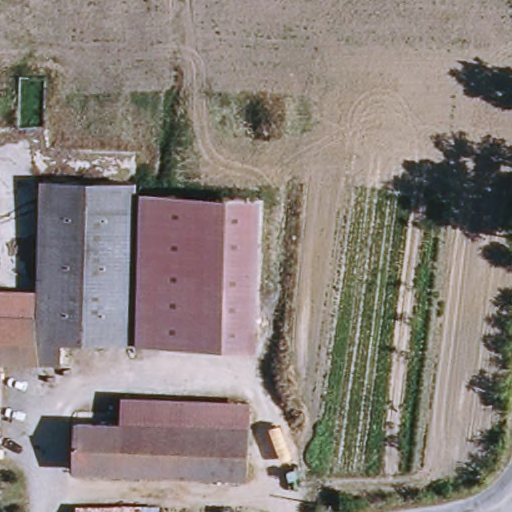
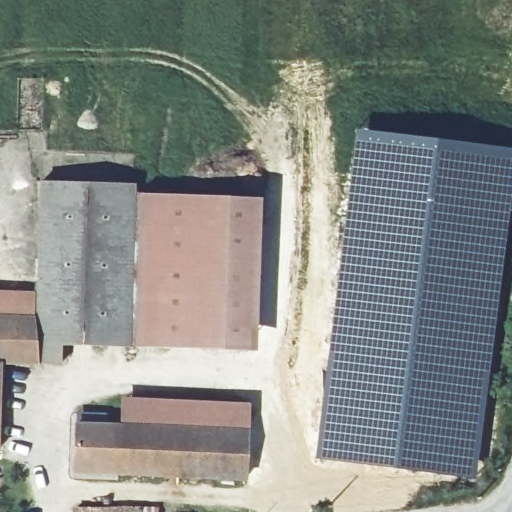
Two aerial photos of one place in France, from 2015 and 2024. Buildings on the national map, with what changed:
new [(325,363),(334,278),(342,229),(353,128),(512,148),(512,187),(510,206),(475,478),(312,460),(325,363)]
unchanged [(34,192),(127,191),(127,196),(127,342),(59,344),(59,366),(34,366),(35,291),(34,192)]
unchanged [(127,196),(242,195),(242,341),(127,342),(127,196)]
unchanged [(34,366),(0,366),(0,292),(35,291),(34,366)]
unchanged [(125,399),(248,403),(247,430),(124,425),(125,399)]
unchanged [(247,472),(223,471),(57,465),(59,422),(124,425),(247,430),(247,472)]
unchanged [(150,508),(167,507),(168,512),(85,512),(85,508),(150,508)]

